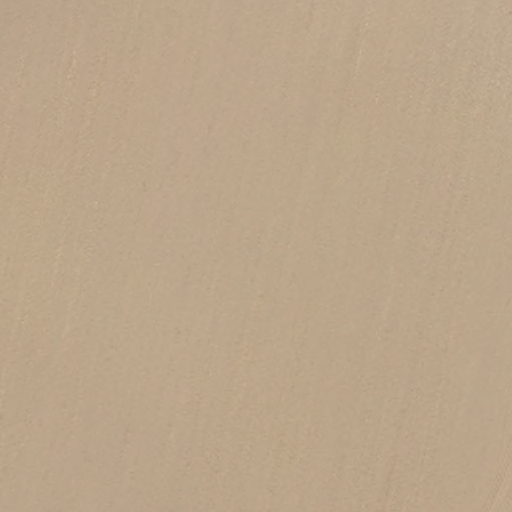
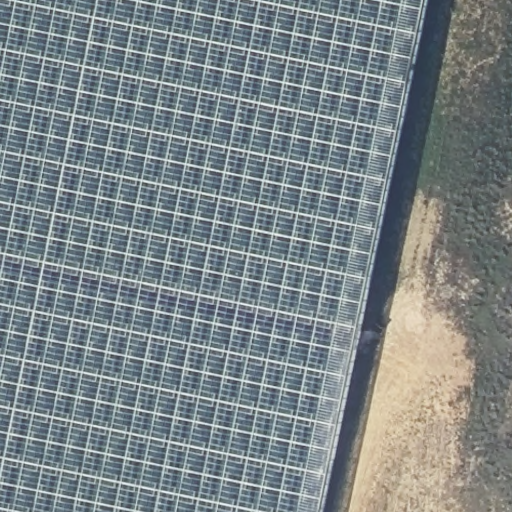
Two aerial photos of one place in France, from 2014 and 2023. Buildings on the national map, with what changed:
new [(325,512),(0,512),(0,0),(431,0),(325,512)]

